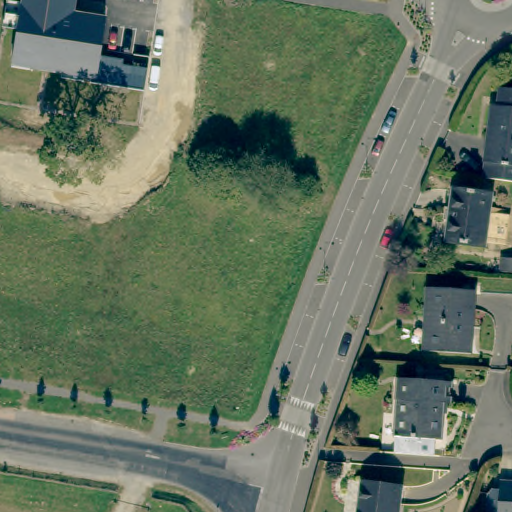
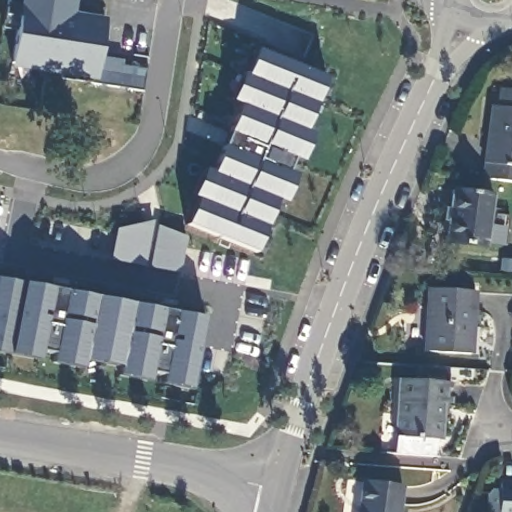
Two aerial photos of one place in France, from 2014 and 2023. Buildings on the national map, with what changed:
unchanged [(74,14),(106,20),(99,57),(124,61),(122,68),(148,72),(143,93),(91,84),(93,82),(11,69),(19,31),(1,29),(6,1),(21,5),(22,0),(76,0),(74,14)]
new [(187,226),(196,200),(192,197),(204,170),(212,173),(241,106),(231,102),(243,75),(246,77),(257,50),(328,77),(305,130),(315,132),(301,162),(294,159),(288,172),(297,175),(286,205),(276,201),(255,255),(187,226)]
unchanged [(487,106),(493,107),(495,89),(512,91),(512,183),(491,180),(478,179),(482,144),(487,106)]
unchanged [(488,195),(481,249),(441,243),(448,190),(488,195)]
unchanged [(493,259),(512,261),(512,273),(492,272),(493,259)]
new [(0,352),(0,278),(204,318),(194,391),(0,352)]
unchanged [(470,292),(466,355),(419,351),(423,289),(470,292)]
unchanged [(433,403),(433,408),(431,440),(386,437),(390,380),(441,383),(439,403),(433,403)]
unchanged [(499,512),(501,482),(512,483),(512,512),(499,512)]
unchanged [(395,512),(354,512),(358,487),(398,492),(395,512)]

